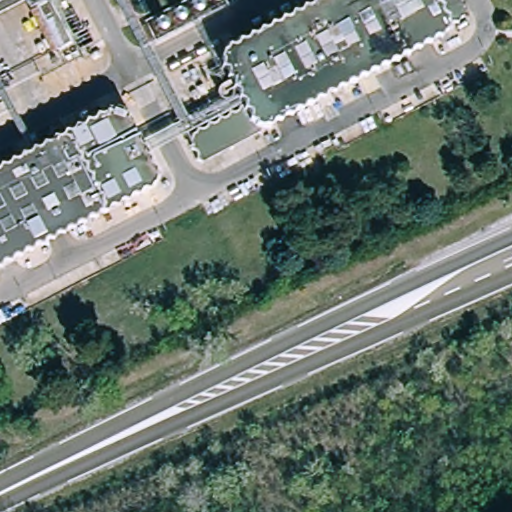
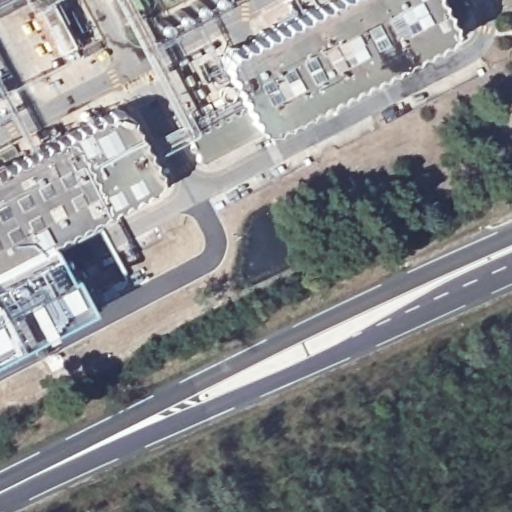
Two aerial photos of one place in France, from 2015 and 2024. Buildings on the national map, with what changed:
demolished [(151,11),(145,14),(140,15),(134,12),(131,9),(128,2),(128,0),(154,0),(154,3),(153,7),(151,11)]
unchanged [(393,64),(387,62),(385,64),(381,69),(376,68),(374,70),(371,75),(365,73),(363,75),(361,80),(356,79),(353,81),(350,85),(344,85),(342,86),(339,91),(334,90),(331,92),(329,97),(323,96),(321,97),(318,102),(313,101),(310,102),(308,107),(301,107),(299,108),(296,113),(291,112),(289,114),(286,118),(280,117),(278,119),(276,124),(269,123),(265,130),(206,160),(206,159),(201,156),(201,150),(200,147),(195,145),(196,131),(200,129),(201,124),(208,125),(210,124),(213,119),(218,120),(221,117),(223,113),(228,114),(231,112),(235,107),(240,109),(241,107),(245,102),(249,103),(250,102),(248,99),(243,96),(243,90),(242,88),(237,86),(238,80),(236,77),(231,74),(233,70),(231,67),(226,64),(228,59),(226,56),(228,51),(230,50),(233,43),(240,43),(241,41),(243,37),(250,37),(255,31),(260,32),(263,30),(265,26),(270,27),(273,26),(275,20),(281,22),(283,20),(286,15),(293,16),(294,15),(296,9),(303,10),(304,9),(307,4),(313,5),(316,3),(317,0),(442,0),(443,2),(447,4),(447,9),(448,12),(453,14),(452,21),(454,23),(451,30),(448,31),(446,36),(440,35),(437,36),(435,41),(429,40),(427,42),(425,47),(419,46),(417,47),(414,52),(408,51),(406,52),(403,58),(397,57),(395,59),(393,64)]
unchanged [(21,251),(19,252),(17,257),(11,257),(8,257),(5,263),(0,262),(0,167),(3,166),(5,161),(6,160),(11,161),(14,160),(16,155),(25,155),(27,149),(33,151),(35,149),(38,143),(45,144),(49,137),(55,139),(60,133),(66,134),(70,127),(78,127),(81,120),(86,122),(88,121),(91,116),(93,115),(97,116),(100,111),(103,110),(109,111),(110,109),(118,112),(118,115),(123,117),(123,122),(124,124),(129,127),(129,133),(130,135),(134,137),(134,144),(135,146),(140,149),(140,154),(141,157),(146,159),(145,165),(146,167),(151,170),(151,176),(152,178),(151,184),(148,187),(145,191),(139,191),(138,192),(134,197),(128,196),(126,197),(123,202),(118,202),(116,202),(113,207),(108,207),(105,208),(102,214),(96,212),(95,213),(91,218),(86,217),(83,219),(80,224),(73,224),(70,230),(64,229),(61,231),(59,236),(53,234),(51,236),(48,241),(43,240),(40,241),(38,247),(31,245),(30,246),(27,252),(21,251)]
new [(8,257),(11,257),(17,257),(19,252),(21,251),(27,252),(30,246),(31,245),(38,247),(40,241),(43,240),(48,241),(63,271),(68,268),(88,303),(0,350),(0,262),(5,263),(8,257)]

